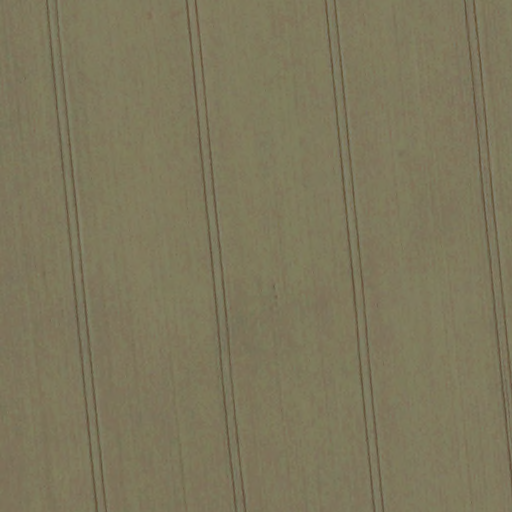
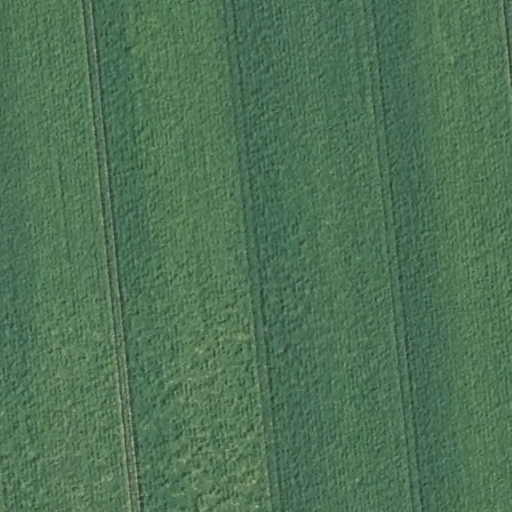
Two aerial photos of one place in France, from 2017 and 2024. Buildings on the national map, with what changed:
[]

